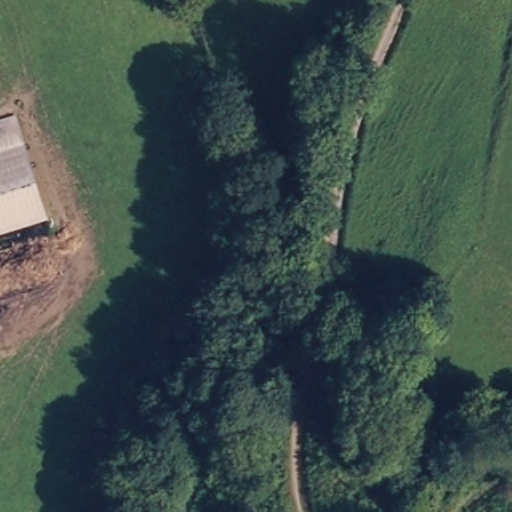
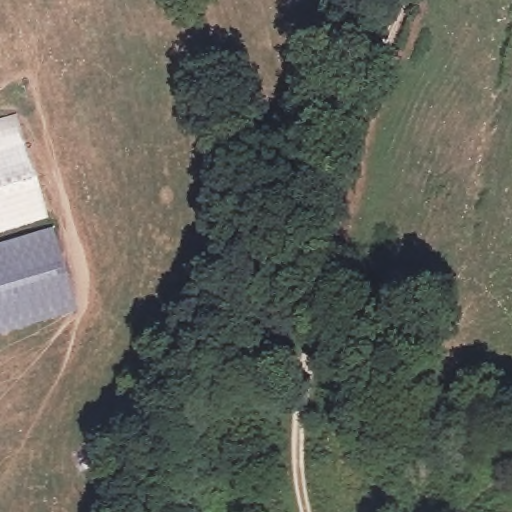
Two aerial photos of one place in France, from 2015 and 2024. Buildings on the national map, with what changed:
unchanged [(22,229),(0,235),(0,124),(17,119),(25,148),(36,185),(46,220),(22,229)]
new [(80,312),(0,336),(0,246),(54,229),(80,312)]

